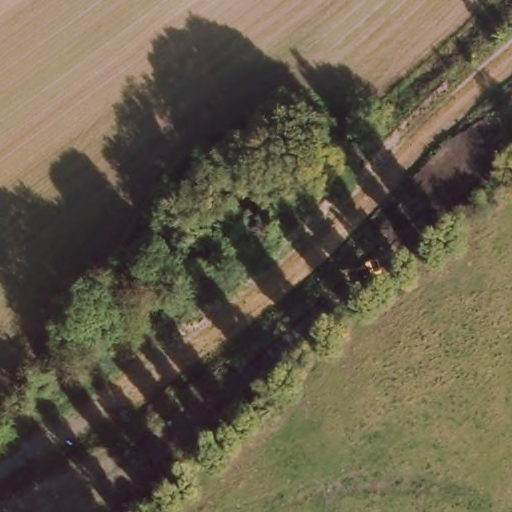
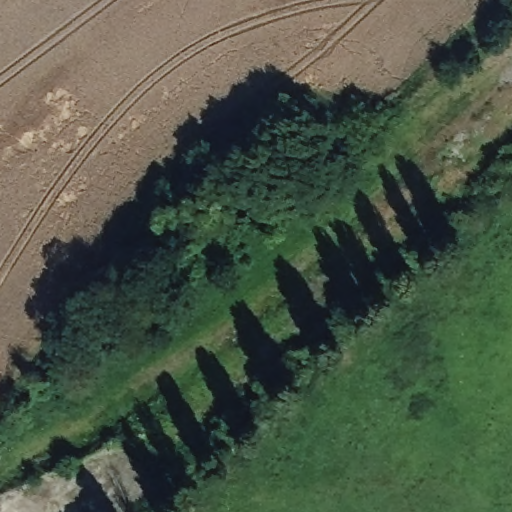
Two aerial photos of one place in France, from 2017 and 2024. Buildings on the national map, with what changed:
unchanged [(246,186),(267,210),(216,257),(195,232),(246,186)]
unchanged [(165,266),(176,280),(152,300),(142,286),(165,266)]

